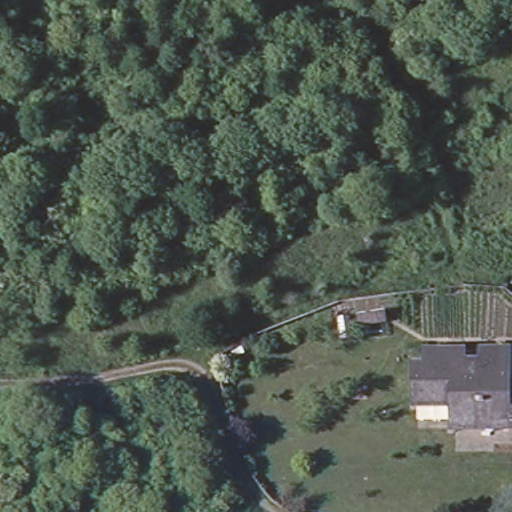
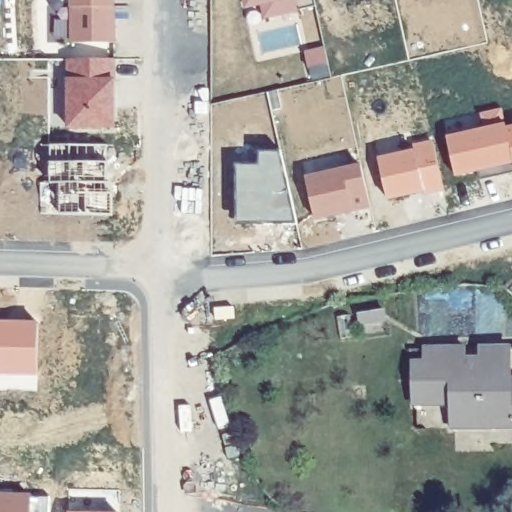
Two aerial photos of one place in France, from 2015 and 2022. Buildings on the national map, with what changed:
new [(110,11),(110,23),(115,23),(115,47),(73,47),(73,0),(115,0),(115,11),(110,11)]
new [(264,9),(249,12),(246,0),(316,0),(319,11),(268,23),(264,9)]
new [(312,74),(309,58),(328,54),(331,70),(312,74)]
new [(70,131),(70,63),(116,64),(116,102),(114,101),(114,131),(70,131)]
new [(487,134),(484,119),(506,114),(512,144),(512,179),(499,182),(497,173),(490,174),(490,172),(482,174),(482,176),(459,181),(450,141),(487,134)]
new [(512,134),(512,143),(510,134),(512,134)]
new [(390,204),(381,165),(418,156),(417,151),(436,147),(446,194),(427,198),(427,196),(412,199),(390,204)]
new [(258,164),(259,151),(277,153),(296,223),(236,223),(236,163),(258,164)]
new [(318,224),(309,183),(364,171),(373,212),(354,216),(339,219),(318,224)]
new [(484,185),(482,176),(482,174),(490,172),(490,174),(497,173),(499,182),(484,185)]
new [(236,312),(236,323),(218,325),(218,314),(236,312)]
new [(34,372),(0,371),(0,324),(34,325),(34,372)]
unchanged [(512,383),(512,428),(492,428),(492,433),(451,434),(450,411),(412,409),(411,363),(422,362),(421,350),(511,349),(512,384),(512,383)]
new [(27,500),(48,501),(48,512),(0,512),(0,496),(27,497),(27,500)]

